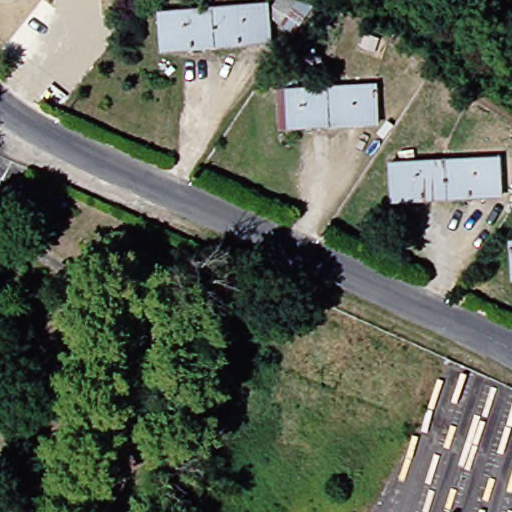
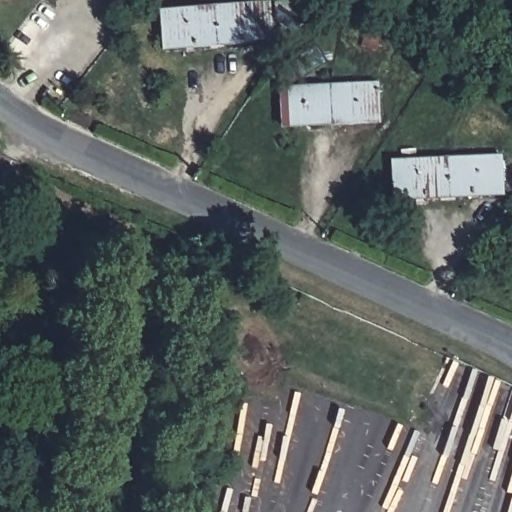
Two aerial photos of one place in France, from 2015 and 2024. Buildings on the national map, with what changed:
unchanged [(164,11),(273,3),(276,0),(311,0),(321,8),(300,34),(276,11),(277,46),(166,54),(164,11)]
unchanged [(288,125),(287,90),(385,85),(386,121),(288,125)]
unchanged [(508,194),(400,199),(399,162),(507,158),(508,194)]

